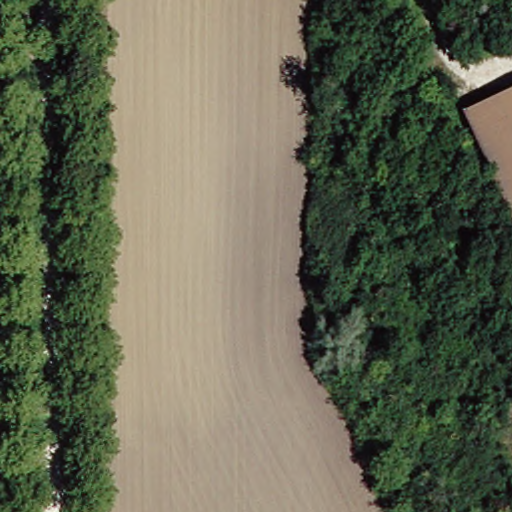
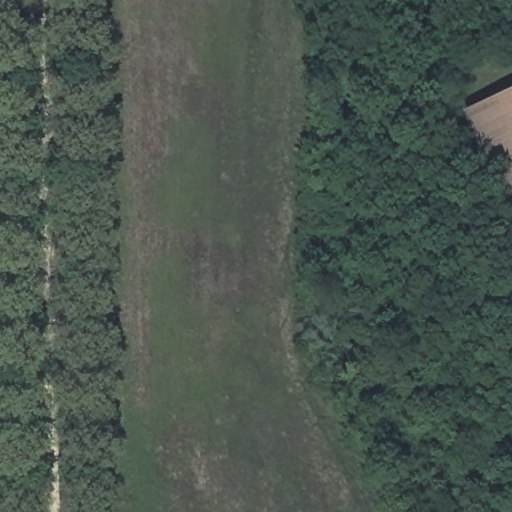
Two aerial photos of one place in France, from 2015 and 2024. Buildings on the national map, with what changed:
unchanged [(467,110),(512,89),(512,208),(467,110)]

